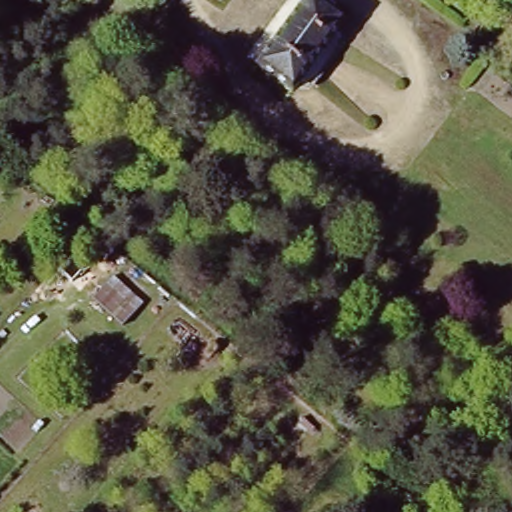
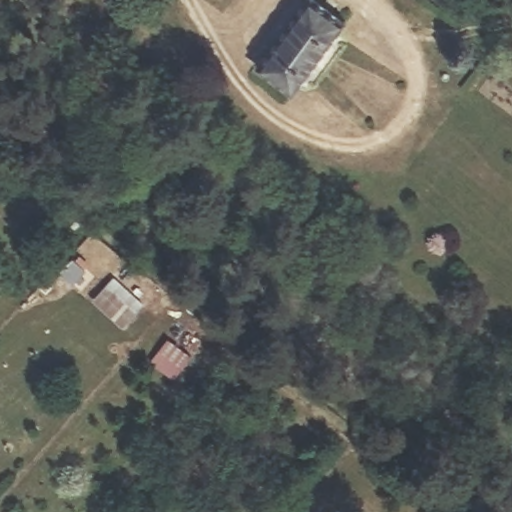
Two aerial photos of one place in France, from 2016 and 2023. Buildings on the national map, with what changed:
unchanged [(339,24),(346,35),(344,43),(334,56),(322,73),(311,87),(302,90),(295,86),(291,90),(257,65),(258,63),(305,0),(313,0),(342,20),(339,24)]
unchanged [(143,302),(123,326),(92,298),(113,275),(143,302)]

